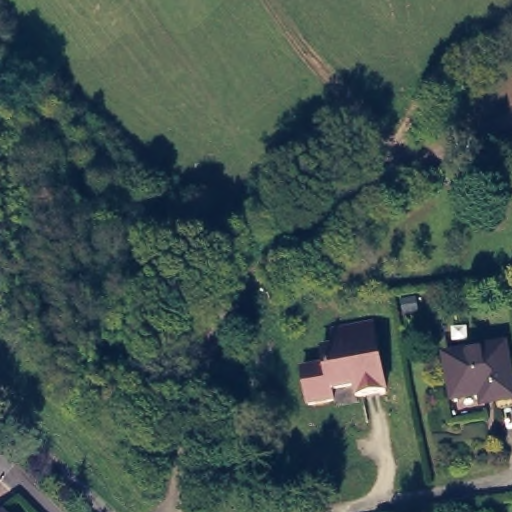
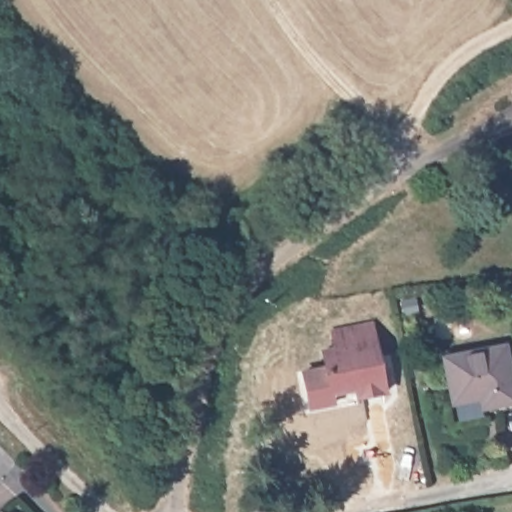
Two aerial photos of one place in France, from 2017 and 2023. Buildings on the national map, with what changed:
unchanged [(332,371),(329,354),(342,351),(339,335),(379,326),(392,394),(364,400),(365,406),(342,410),(340,405),(315,410),(309,375),(332,371)]
unchanged [(478,394),(450,400),(442,355),(502,343),(512,398),(493,401),(480,404),(478,394)]
unchanged [(9,512),(0,512),(0,511),(5,506),(9,512)]

